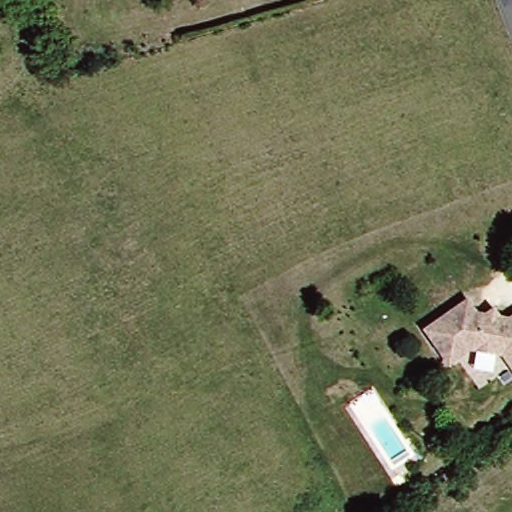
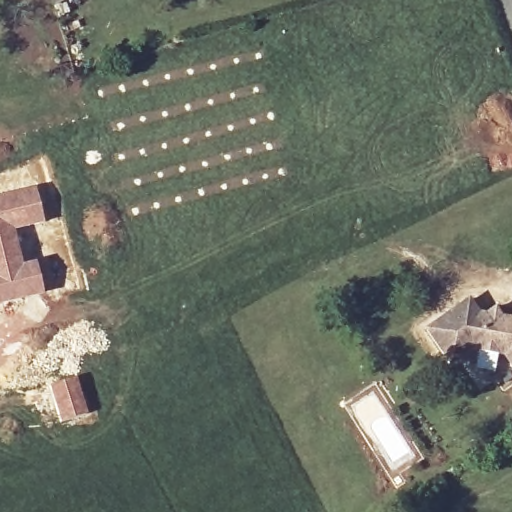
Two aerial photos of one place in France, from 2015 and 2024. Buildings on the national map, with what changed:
new [(58,0),(68,0),(60,3),(58,0)]
new [(35,186),(45,221),(15,230),(22,262),(37,260),(45,295),(0,305),(0,196),(35,186)]
unchanged [(512,316),(512,367),(505,355),(467,349),(449,362),(422,327),(468,298),(477,310),(492,309),(497,313),(510,317),(512,316)]

